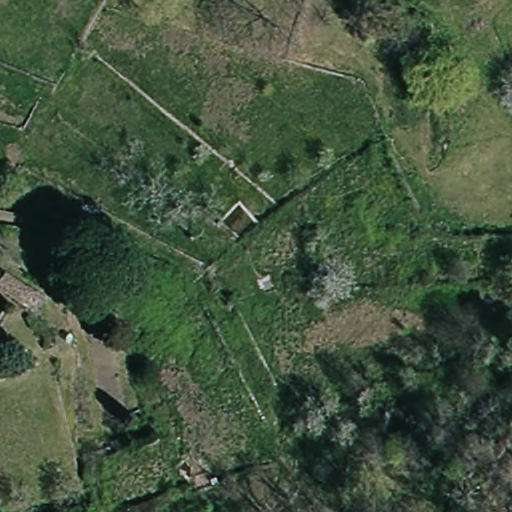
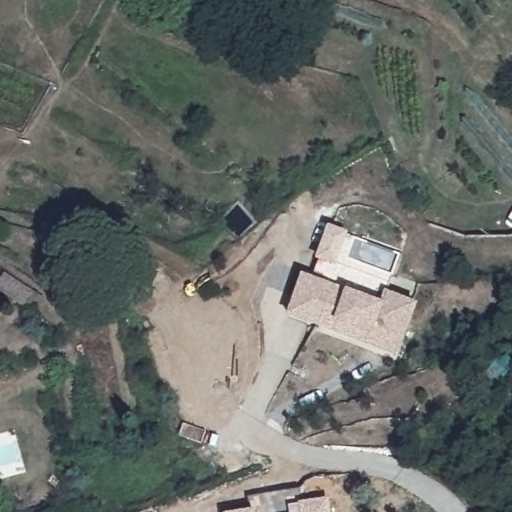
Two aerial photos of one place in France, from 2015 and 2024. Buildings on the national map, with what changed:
unchanged [(37,316),(12,301),(0,319),(0,279),(5,271),(48,298),(37,316)]
new [(371,337),(289,315),(300,276),(328,284),(324,299),(341,304),(345,288),(381,298),(384,286),(415,295),(405,330),(401,346),(371,337)]
new [(303,506),(329,501),(330,512),(303,512),(303,506)]
new [(255,510),(255,512),(240,512),(255,510)]

